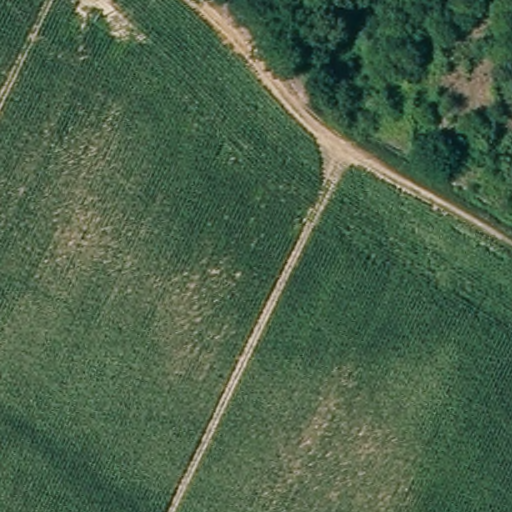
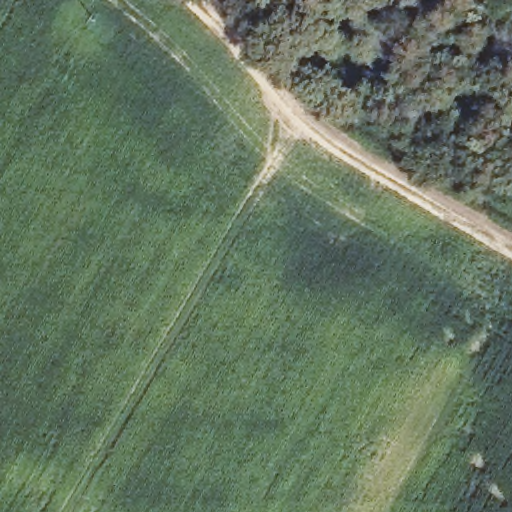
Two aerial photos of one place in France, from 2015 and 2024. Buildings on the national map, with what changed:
[]

